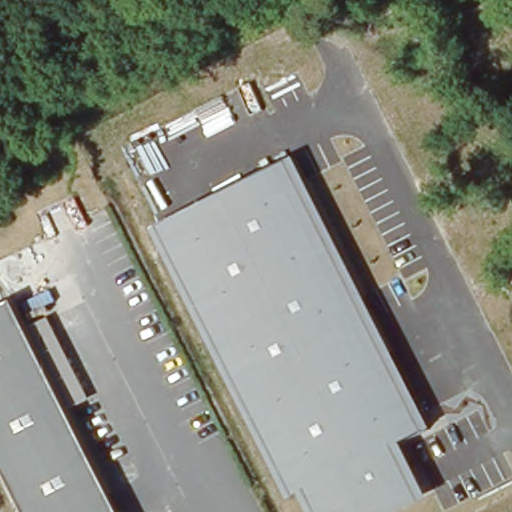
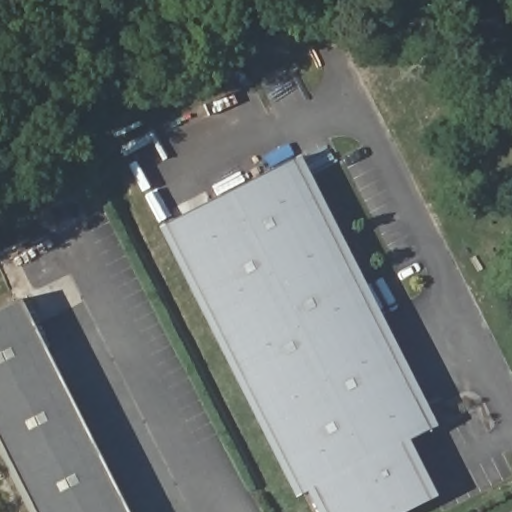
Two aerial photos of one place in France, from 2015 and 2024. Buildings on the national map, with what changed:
unchanged [(439,428),(414,444),(438,500),(415,512),(323,512),(312,492),(297,500),(165,230),(301,156),(439,428)]
unchanged [(15,300),(26,327),(50,315),(92,400),(67,413),(118,512),(28,512),(0,456),(0,307),(15,300)]

